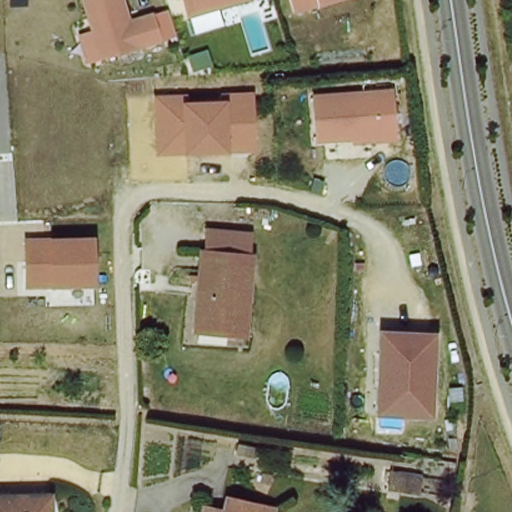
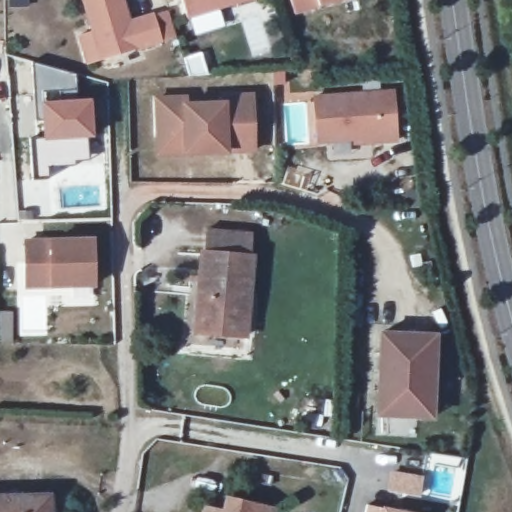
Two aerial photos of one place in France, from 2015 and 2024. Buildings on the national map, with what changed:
unchanged [(152,14),(161,41),(100,60),(81,0),(121,0),(128,21),(152,14)]
unchanged [(185,18),(180,0),(245,0),(185,18)]
unchanged [(293,14),(288,0),(337,0),(293,14)]
new [(77,74),(78,97),(36,101),(33,62),(77,74)]
unchanged [(396,90),(401,142),(358,145),(357,141),(317,144),(315,95),(396,90)]
new [(78,97),(91,96),(94,137),(87,137),(42,137),(36,101),(78,97)]
unchanged [(189,97),(189,105),(225,105),(224,96),(254,96),(255,151),(227,151),(189,152),(162,152),(160,97),(189,97)]
new [(33,139),(42,137),(87,137),(88,160),(47,166),(46,176),(48,206),(27,207),(22,182),(35,180),(35,177),(33,139)]
unchanged [(51,237),(94,237),(96,288),(52,288),(26,288),(26,240),(51,237)]
unchanged [(249,276),(244,326),(194,321),(202,241),(252,247),(249,276)]
unchanged [(373,417),(374,383),(376,335),(431,337),(429,412),(428,419),(373,417)]
unchanged [(54,512),(0,512),(0,495),(53,493),(54,512)]
unchanged [(218,508),(221,496),(266,507),(265,512),(195,512),(197,503),(218,508)]
new [(398,512),(365,512),(367,505),(398,512)]

